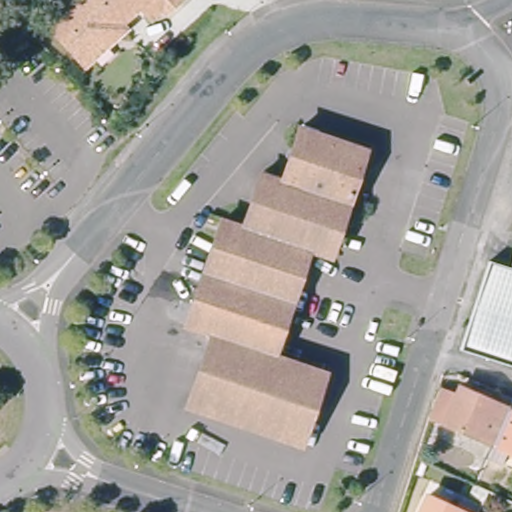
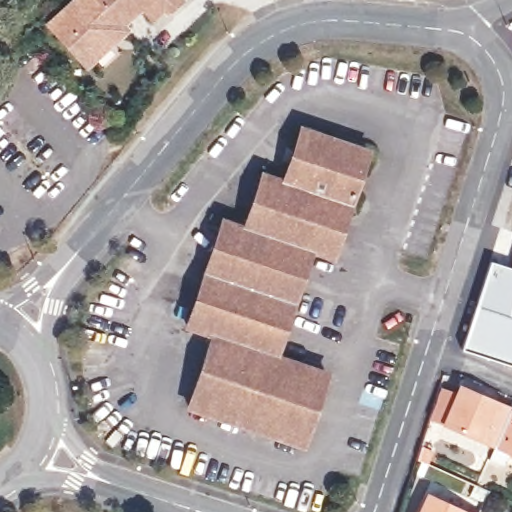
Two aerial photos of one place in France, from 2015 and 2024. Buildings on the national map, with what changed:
unchanged [(148,15),(138,5),(117,22),(121,28),(82,62),(46,20),(69,0),(165,0),(148,15)]
unchanged [(311,249),(277,356),(329,373),(305,444),(190,406),(213,335),(187,326),(222,220),(244,227),(261,175),(283,181),(300,129),(367,150),(333,255),(311,249)]
unchanged [(492,262),(512,269),(512,367),(462,350),(492,262)]
unchanged [(442,425),(456,394),(458,388),(475,396),(474,399),(506,412),(491,447),(442,425)]
unchanged [(506,412),(512,415),(512,456),(491,447),(506,412)]
unchanged [(461,512),(425,512),(431,498),(461,512)]

